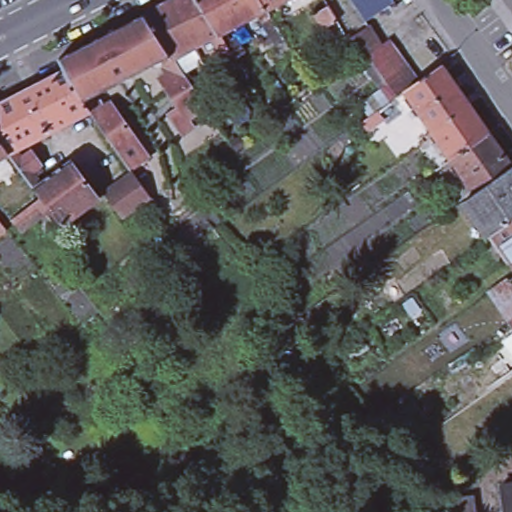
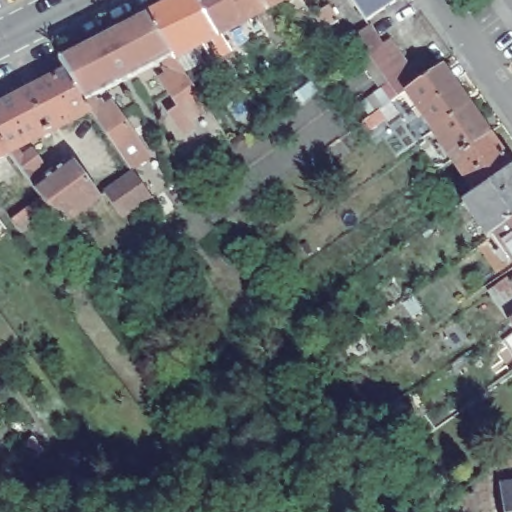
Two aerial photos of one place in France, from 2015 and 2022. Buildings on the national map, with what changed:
unchanged [(240,63),(232,50),(207,64),(195,46),(183,52),(174,57),(171,53),(145,13),(170,0),(283,0),(269,7),(275,17),(266,22),(260,12),(226,30),(230,35),(225,39),(230,48),(238,43),(248,58),(240,63)]
unchanged [(397,0),(366,18),(356,0),(397,0)]
unchanged [(327,32),(318,16),(331,8),(337,19),(340,24),(327,32)]
unchanged [(25,175),(27,173),(19,162),(13,155),(12,155),(0,161),(0,101),(66,67),(61,57),(145,13),(171,53),(163,56),(87,90),(98,108),(110,100),(147,152),(131,164),(94,112),(85,99),(84,100),(17,151),(23,159),(33,151),(38,151),(45,160),(45,166),(47,169),(40,174),(45,180),(72,159),(100,195),(63,224),(52,209),(31,225),(28,226),(23,230),(13,218),(14,218),(16,216),(44,199),(35,188),(25,175)]
unchanged [(385,78),(367,53),(361,57),(350,37),(370,21),(383,41),(390,35),(429,74),(407,90),(399,96),(392,100),(370,115),(358,101),(380,85),(379,83),(385,78)]
unchanged [(174,57),(183,52),(196,86),(192,89),(196,97),(201,95),(210,111),(198,118),(202,125),(185,136),(167,111),(176,105),(162,63),(174,57)]
unchanged [(436,131),(407,90),(429,74),(445,64),(471,103),(436,131)]
unchanged [(405,118),(383,133),(370,115),(372,114),(392,100),(405,118)]
unchanged [(452,156),(436,131),(471,103),(490,131),(452,156)]
unchanged [(492,180),(491,179),(476,190),(452,156),(490,131),(512,162),(512,165),(492,180)]
unchanged [(512,165),(512,217),(493,230),(494,231),(487,236),(463,199),(476,190),(491,179),(492,180),(512,165)]
unchanged [(105,191),(117,181),(135,169),(149,189),(152,194),(135,206),(122,215),(105,191)]
unchanged [(496,233),(494,231),(493,230),(512,217),(512,257),(496,233)]
unchanged [(511,321),(489,291),(510,276),(510,278),(512,277),(512,323),(511,321)]
unchanged [(512,487),(512,512),(503,512),(500,489),(512,487)]
unchanged [(471,499),(473,512),(455,512),(453,503),(471,499)]

